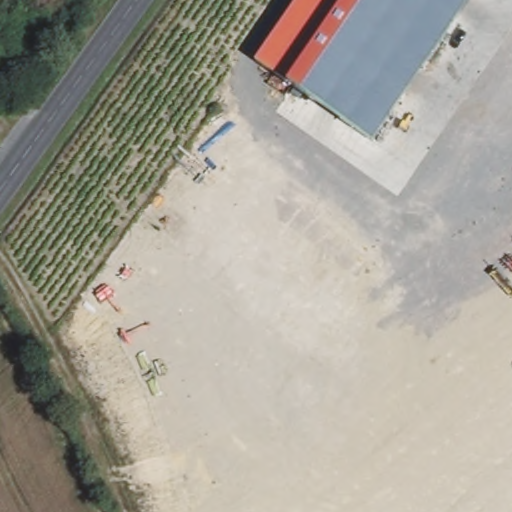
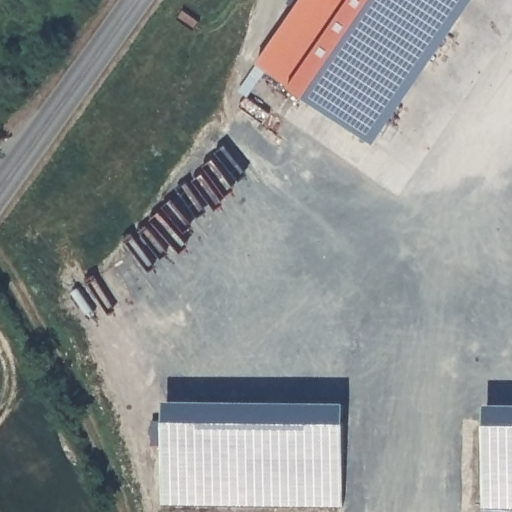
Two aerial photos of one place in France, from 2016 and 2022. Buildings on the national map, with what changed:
unchanged [(256,62),(298,0),(472,0),(373,142),(256,62)]
new [(152,443),(152,420),(164,420),(164,419),(344,421),(343,506),(162,504),(163,443),(152,443)]
new [(484,423),(512,423),(512,508),(507,508),(507,512),(483,512),(483,507),(484,423)]

